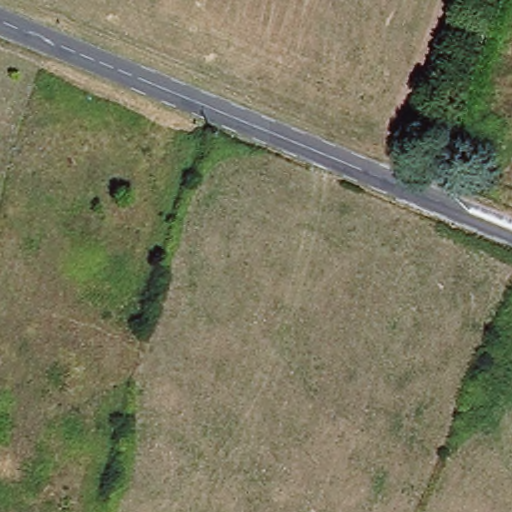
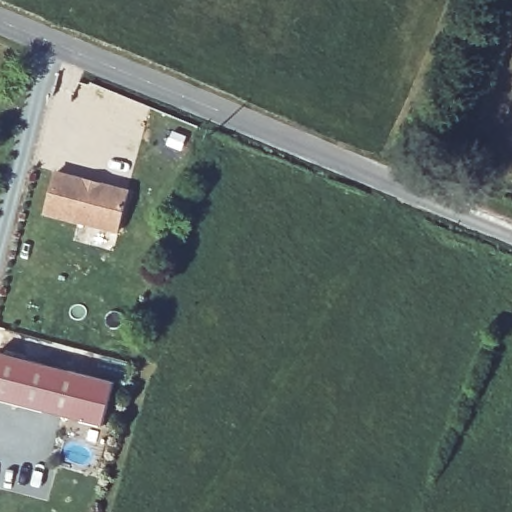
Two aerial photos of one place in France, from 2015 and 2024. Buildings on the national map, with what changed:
new [(54,173),(127,195),(115,235),(42,215),(54,173)]
new [(114,382),(104,425),(0,398),(0,352),(114,382)]

